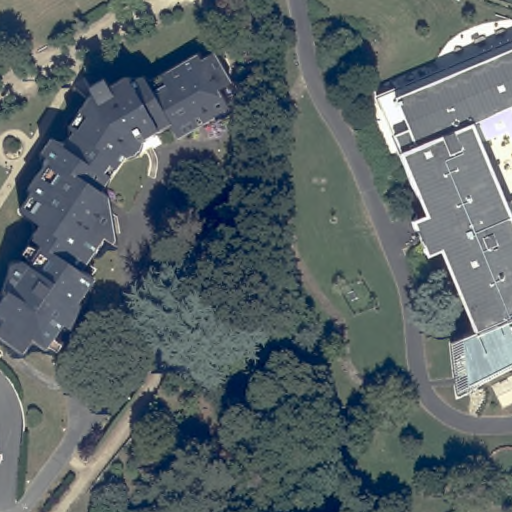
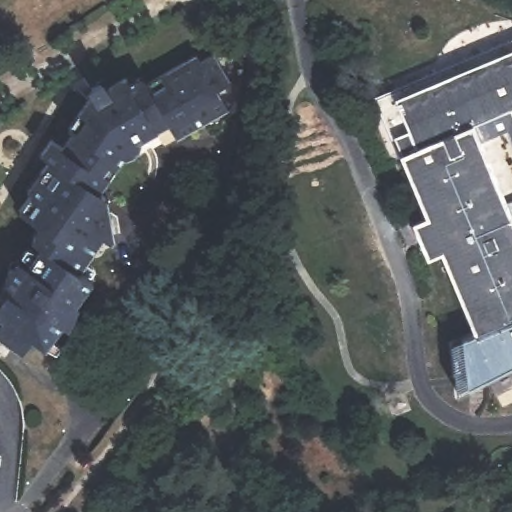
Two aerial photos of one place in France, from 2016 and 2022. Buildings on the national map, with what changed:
unchanged [(414,223),(428,217),(402,156),(400,157),(375,97),(512,39),(512,136),(509,130),(480,142),(506,204),(512,202),(512,319),(476,333),(442,251),(428,257),(414,223)]
unchanged [(35,199),(31,196),(44,179),(53,167),(45,161),(55,145),(67,153),(77,138),(72,135),(92,106),(97,103),(92,95),(108,86),(112,94),(131,83),(132,87),(147,82),(151,89),(201,61),(204,66),(218,59),(235,90),(221,97),(233,116),(181,146),(173,132),(145,147),(146,150),(143,162),(131,165),(130,164),(105,199),(112,204),(121,254),(109,246),(85,278),(98,287),(81,311),(84,312),(75,337),(68,332),(50,356),(37,347),(26,361),(0,340),(0,338),(8,327),(0,321),(0,315),(12,299),(7,297),(15,271),(27,268),(32,272),(44,252),(36,247),(45,233),(30,222),(23,217),(35,199)]
unchanged [(462,339),(476,333),(512,319),(512,364),(469,385),(462,339)]
unchanged [(126,447),(153,470),(135,492),(108,469),(126,447)]

